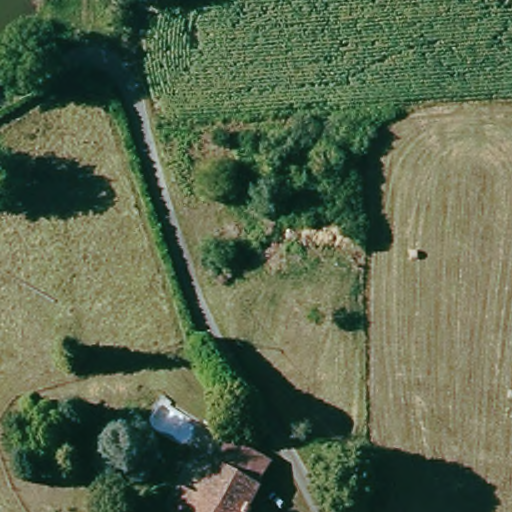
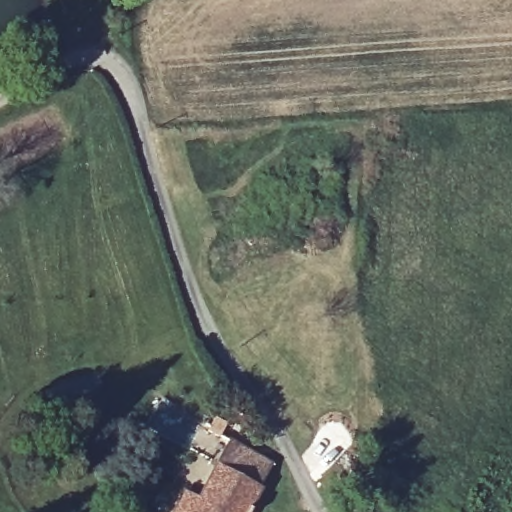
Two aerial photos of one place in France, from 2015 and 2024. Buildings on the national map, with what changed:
unchanged [(203,410),(164,386),(178,365),(217,391),(203,410)]
unchanged [(281,462),(269,487),(224,466),(237,441),(281,462)]
unchanged [(269,487),(258,512),(183,512),(189,496),(206,502),(224,466),(269,487)]

